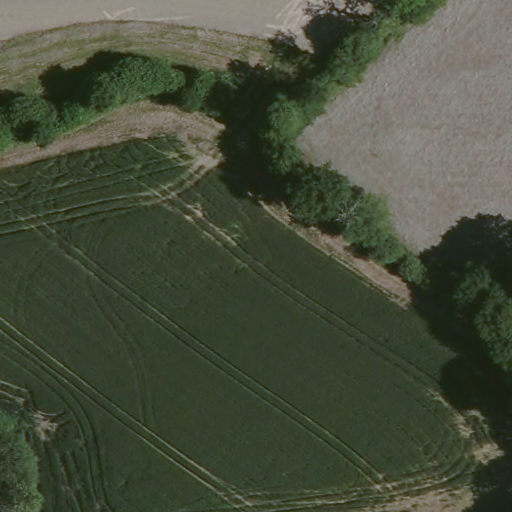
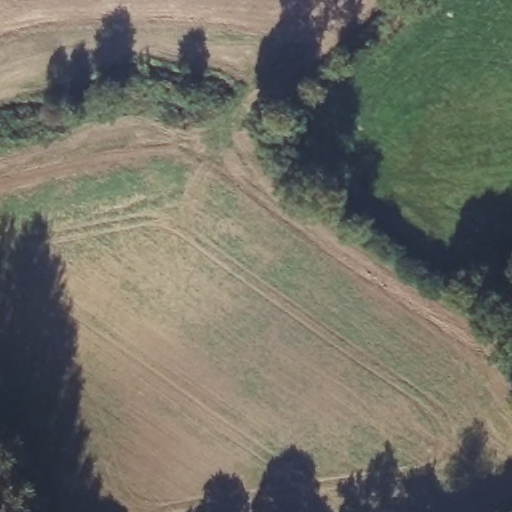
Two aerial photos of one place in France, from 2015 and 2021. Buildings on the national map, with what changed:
[]

